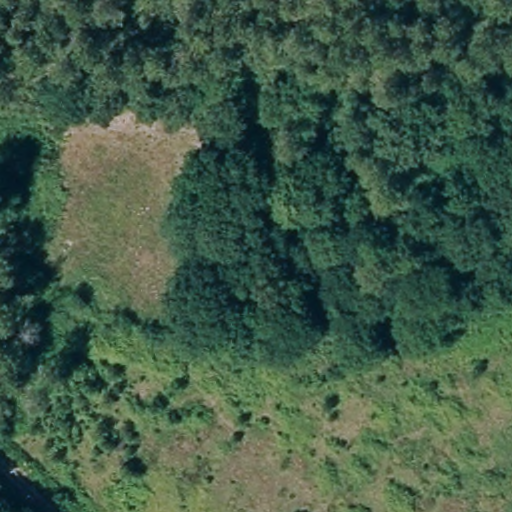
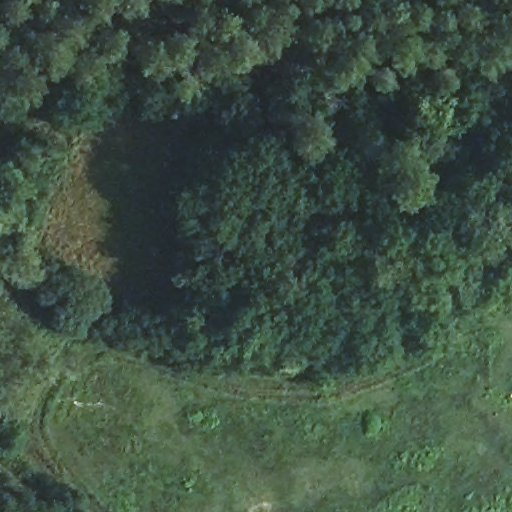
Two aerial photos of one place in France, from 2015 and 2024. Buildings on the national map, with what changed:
[]

